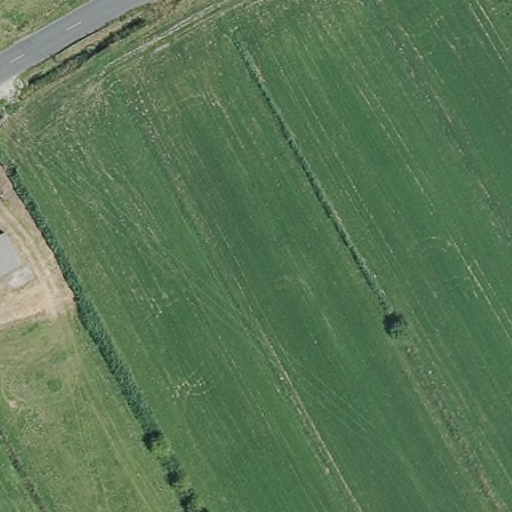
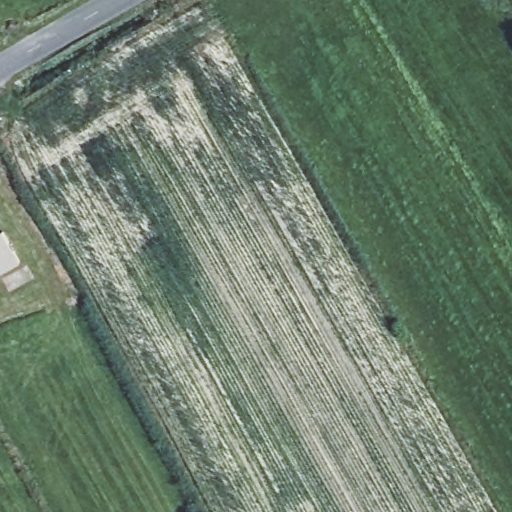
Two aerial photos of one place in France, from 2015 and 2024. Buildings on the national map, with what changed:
unchanged [(0,273),(0,235),(16,264),(0,273)]

